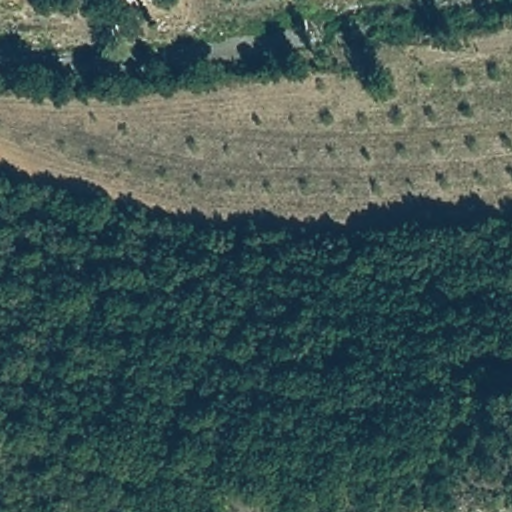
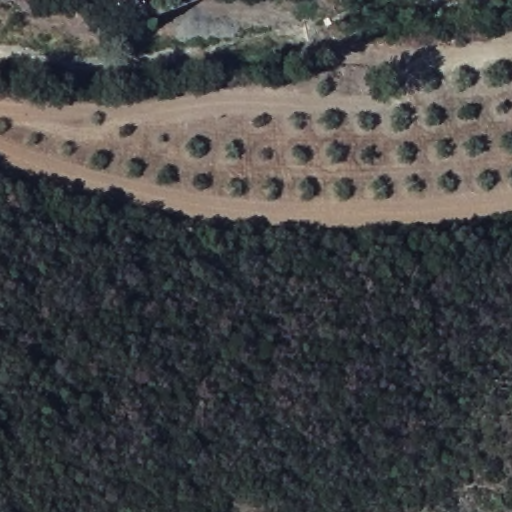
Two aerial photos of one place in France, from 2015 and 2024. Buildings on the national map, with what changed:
unchanged [(120,1),(120,0),(145,0),(145,2),(120,1)]

